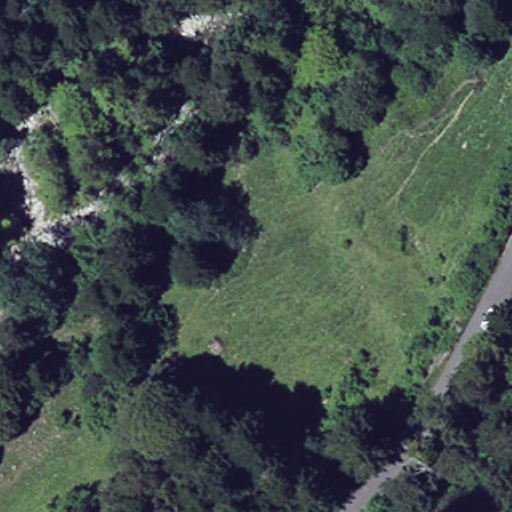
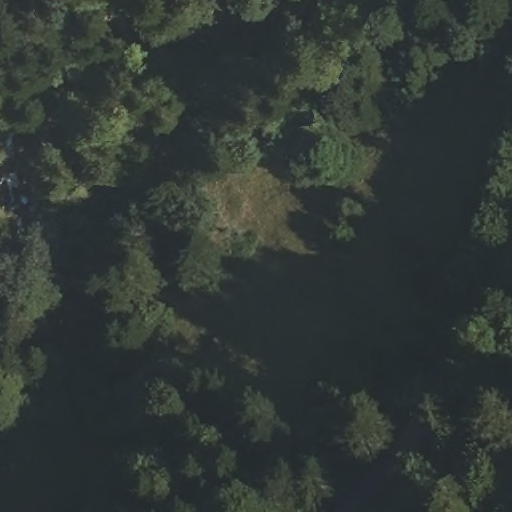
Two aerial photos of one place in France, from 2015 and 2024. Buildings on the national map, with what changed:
[]

